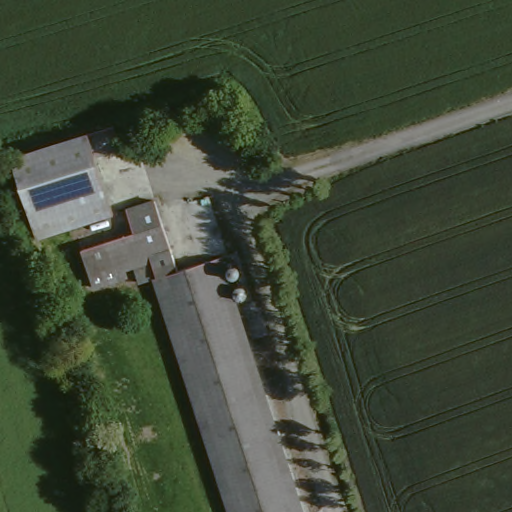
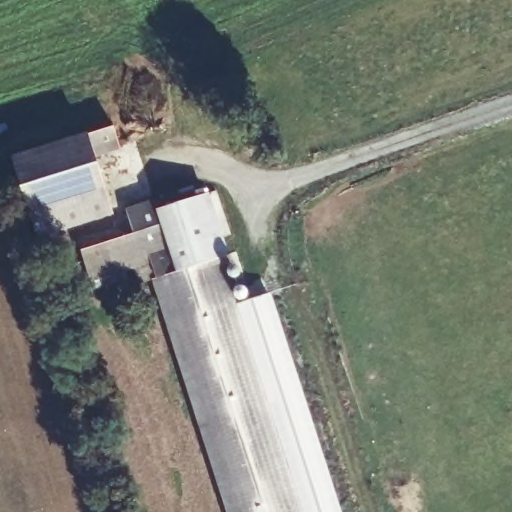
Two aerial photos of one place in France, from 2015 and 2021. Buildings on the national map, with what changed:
unchanged [(80,135),(112,126),(121,150),(95,155),(114,212),(37,237),(11,158),(80,135)]
new [(209,192),(229,254),(221,257),(237,305),(271,292),(342,512),(296,512),(213,267),(178,280),(158,210),(209,192)]
unchanged [(83,249),(135,235),(128,207),(154,199),(178,280),(160,286),(156,278),(141,282),(134,268),(124,270),(126,278),(91,287),(83,249)]
new [(241,272),(241,273),(239,275),(238,276),(236,277),(231,276),(229,275),(229,272),(229,269),(229,267),(231,266),(232,265),(234,265),(238,265),(240,266),(241,272)]
unchanged [(146,291),(160,286),(178,280),(213,267),(296,512),(222,512),(146,291)]
new [(247,286),(248,287),(249,290),(249,291),(249,293),(248,296),(245,298),(241,298),(237,297),(235,295),(234,292),(235,288),(236,287),(238,285),(242,285),(247,286)]

